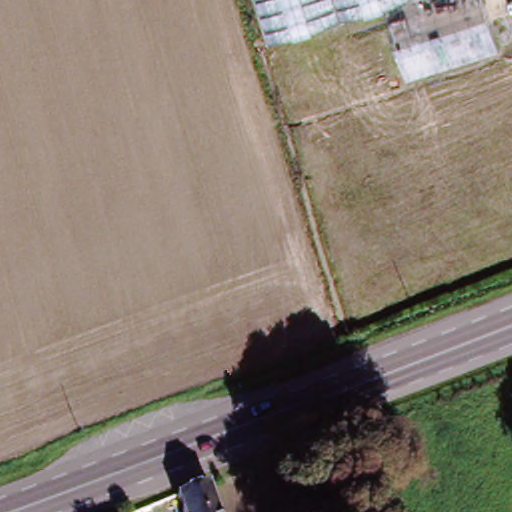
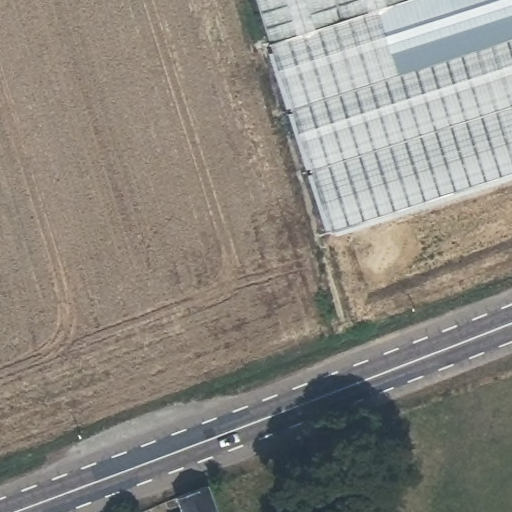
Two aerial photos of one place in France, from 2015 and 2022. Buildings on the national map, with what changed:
unchanged [(253,0),(410,0),(412,5),(385,13),(269,49),(253,0)]
new [(329,235),(269,49),(412,5),(427,0),(512,0),(512,178),(329,235)]
unchanged [(410,0),(427,0),(412,5),(410,0)]
unchanged [(209,463),(219,512),(180,512),(172,478),(209,463)]

